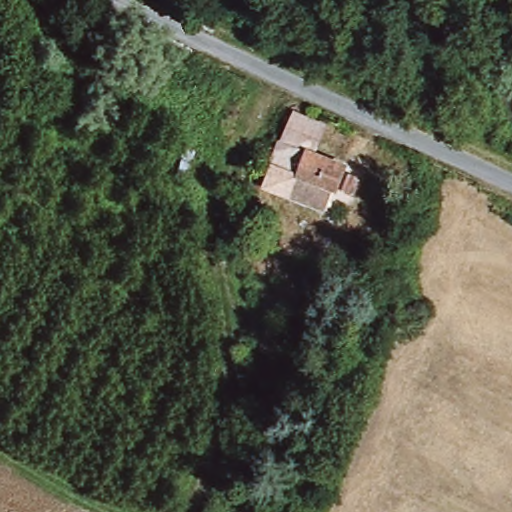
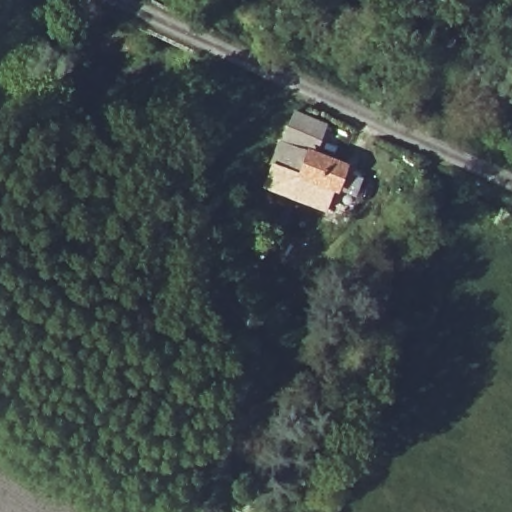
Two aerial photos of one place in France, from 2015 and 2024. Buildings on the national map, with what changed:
unchanged [(303,177),(276,166),(296,111),(324,124),(312,153),(350,169),(331,212),(294,199),(303,177)]

